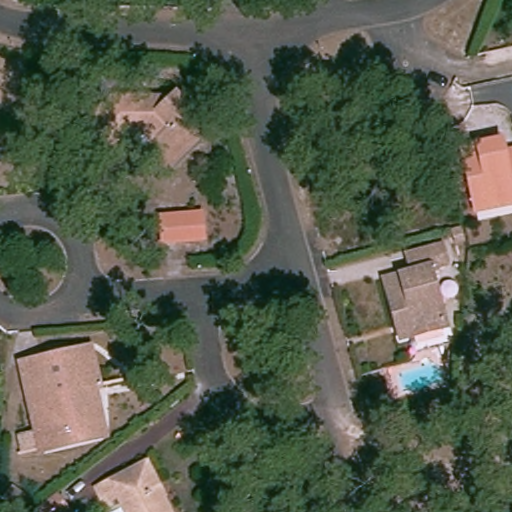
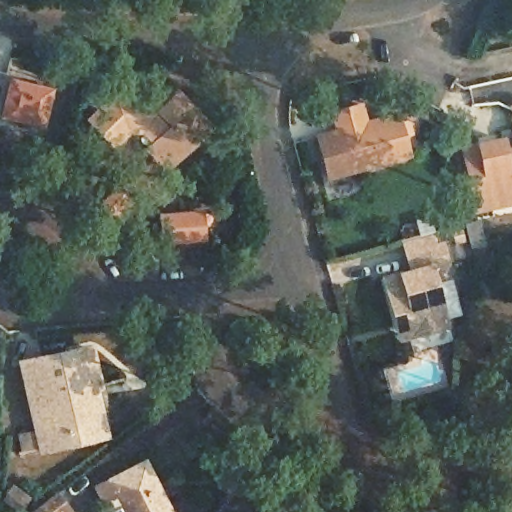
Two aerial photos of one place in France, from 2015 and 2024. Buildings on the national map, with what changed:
new [(9,77),(54,88),(43,130),(0,118),(0,114),(9,77)]
unchanged [(164,143),(163,141),(153,133),(135,132),(121,144),(96,119),(120,96),(177,99),(184,92),(211,121),(217,127),(201,142),(181,162),(173,168),(156,150),(164,143)]
new [(330,127),(326,111),(362,99),(367,117),(399,107),(412,160),(326,181),(312,132),(330,127)]
unchanged [(459,151),(496,142),(499,154),(512,151),(512,158),(460,153),(459,151)]
unchanged [(484,199),(470,202),(458,154),(512,158),(512,204),(487,210),(484,199)]
unchanged [(202,213),(204,238),(164,241),(162,216),(202,213)]
new [(481,219),(488,247),(469,251),(461,224),(481,219)]
unchanged [(392,327),(383,287),(409,281),(405,263),(432,256),(440,254),(441,260),(444,272),(429,276),(443,334),(407,344),(398,347),(392,327)]
unchanged [(90,441),(41,452),(21,367),(86,353),(95,391),(105,438),(90,441)]
unchanged [(144,467),(166,512),(107,512),(97,491),(144,467)]
unchanged [(71,511),(71,512),(35,512),(58,494),(71,511)]

